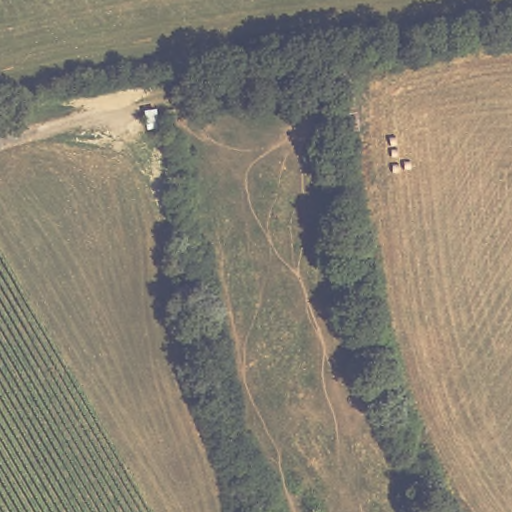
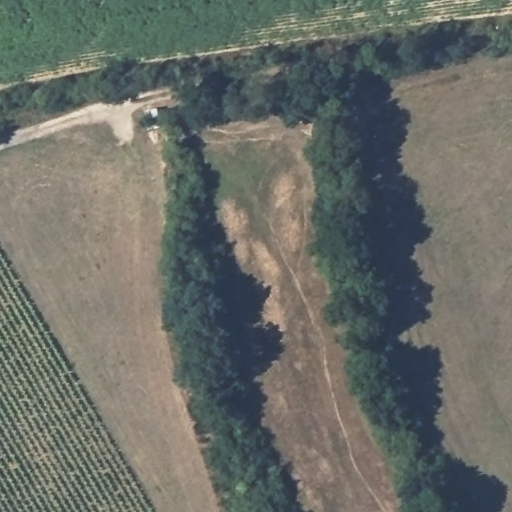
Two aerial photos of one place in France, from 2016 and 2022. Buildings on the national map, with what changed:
unchanged [(315,97),(318,115),(296,119),(293,102),(315,97)]
unchanged [(145,112),(158,109),(162,129),(149,132),(145,112)]

